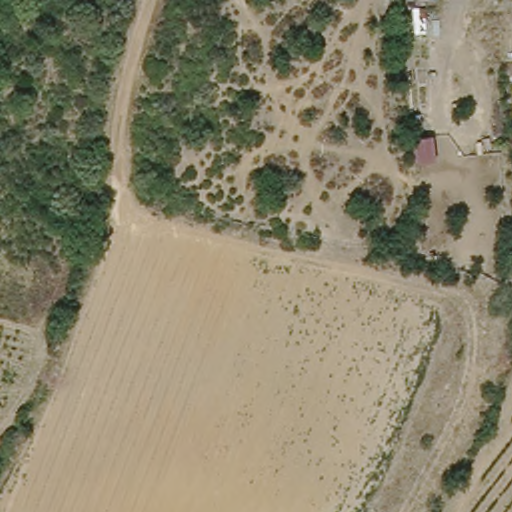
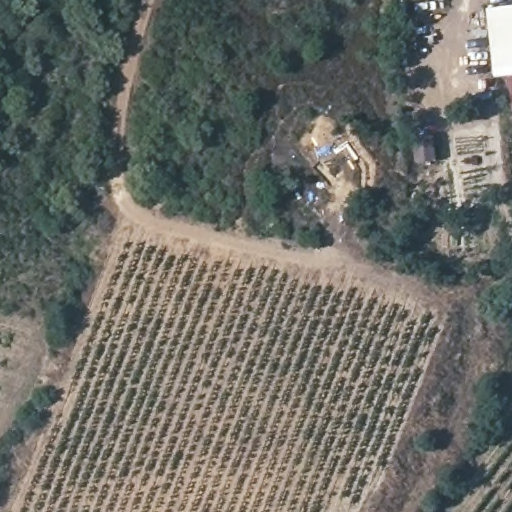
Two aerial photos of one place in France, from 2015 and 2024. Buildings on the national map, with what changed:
new [(512,63),(487,65),(483,14),(512,12),(512,63)]
new [(512,105),(511,105),(507,76),(493,76),(491,65),(512,63),(512,105)]

